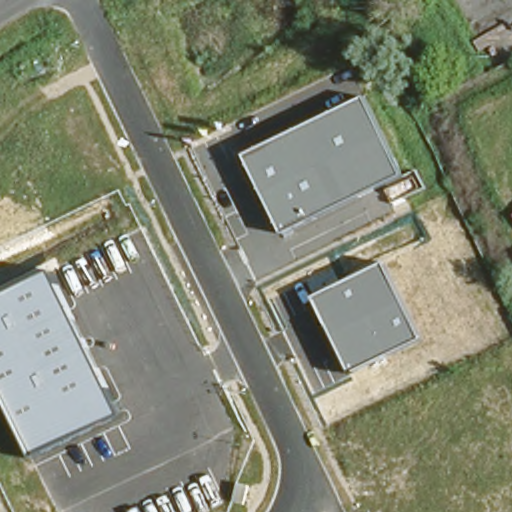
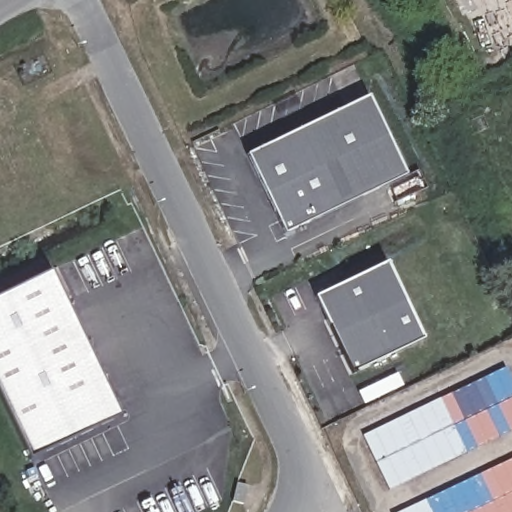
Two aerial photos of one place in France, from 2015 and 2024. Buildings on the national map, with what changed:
unchanged [(405,176),(285,234),(247,156),(367,96),(405,176)]
unchanged [(353,374),(316,298),(387,264),(422,340),(353,374)]
unchanged [(31,458),(0,393),(0,297),(51,272),(121,416),(31,458)]
new [(362,437),(505,367),(512,381),(512,431),(388,491),(362,437)]
new [(512,512),(402,512),(512,460),(512,512)]

